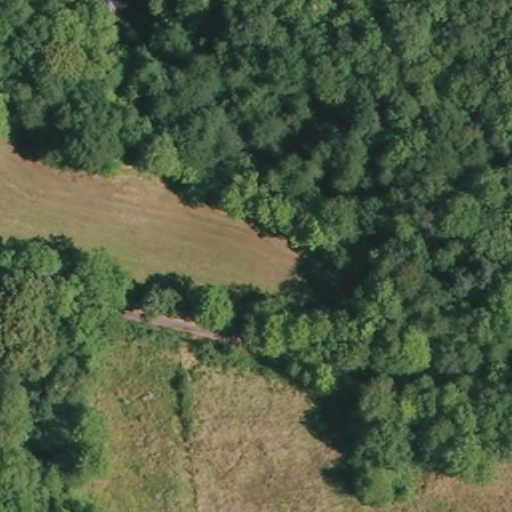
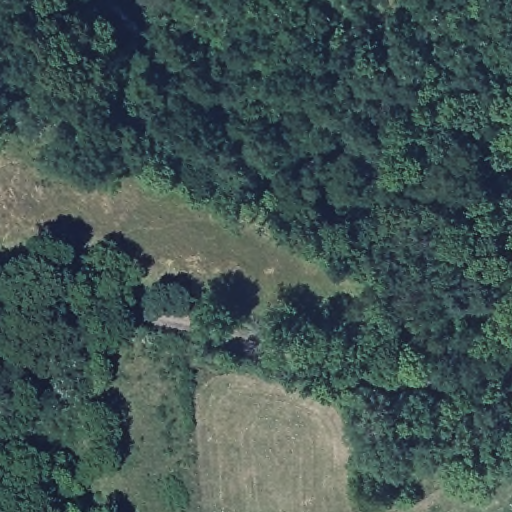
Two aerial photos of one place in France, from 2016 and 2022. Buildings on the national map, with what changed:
[]

